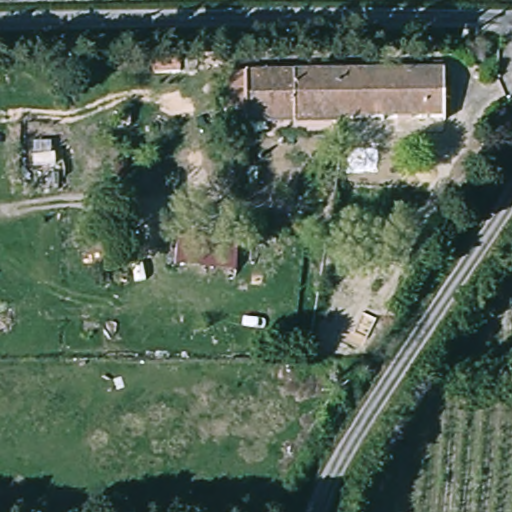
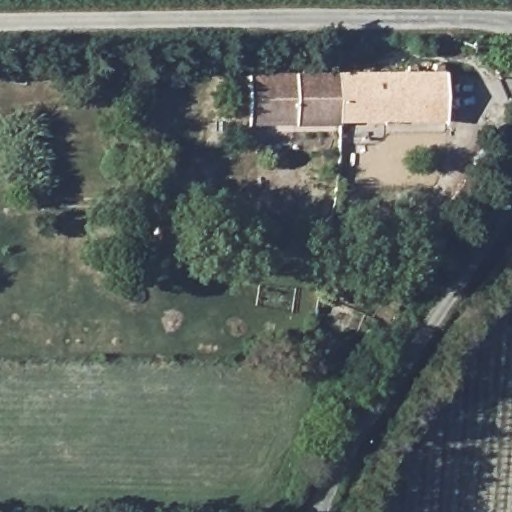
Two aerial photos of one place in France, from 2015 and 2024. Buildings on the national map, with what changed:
unchanged [(226,76),(206,75),(154,74),(155,56),(207,57),(226,57),(226,76)]
unchanged [(334,74),(334,76),(335,120),(247,120),(246,74),(334,74)]
unchanged [(441,74),(441,120),(335,120),(334,76),(334,74),(441,74)]

